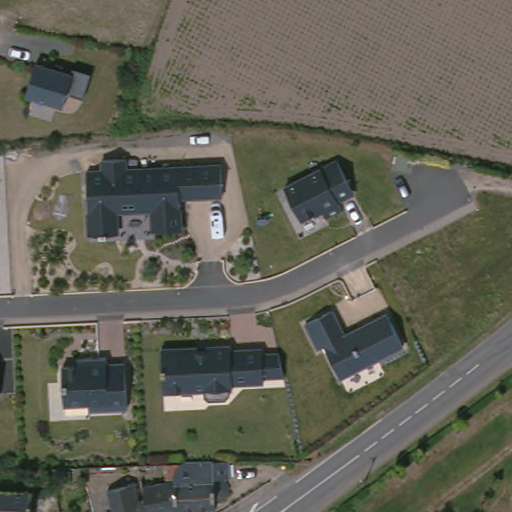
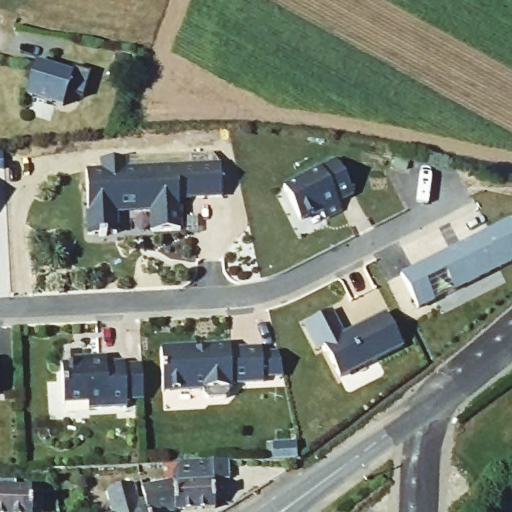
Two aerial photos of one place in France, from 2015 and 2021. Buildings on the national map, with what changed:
unchanged [(83,100),(69,95),(64,109),(25,98),(35,62),(89,78),(83,100)]
unchanged [(336,167),(351,200),(336,208),(340,216),(323,224),(319,216),(299,226),(283,193),(336,167)]
unchanged [(87,181),(103,180),(102,170),(127,168),(127,178),(133,178),(221,173),(223,205),(180,207),(182,239),(154,240),(153,220),(136,221),(118,222),(119,243),(91,244),(87,181)]
new [(512,264),(455,291),(444,269),(425,278),(435,301),(418,309),(402,276),(512,221),(512,264)]
unchanged [(336,381),(324,357),(317,357),(304,328),(328,315),(341,339),(382,317),(399,349),(336,381)]
unchanged [(77,365),(76,358),(106,356),(106,363),(125,362),(127,408),(90,410),(89,403),(64,405),(62,366),(77,365)]
unchanged [(264,388),(264,393),(233,394),(233,399),(230,399),(230,405),(227,409),(209,410),(205,406),(205,400),(165,401),(163,359),(198,358),(198,361),(207,361),(207,358),(232,357),(232,361),(263,360),(263,365),(280,364),(283,377),(285,387),(264,388)]
unchanged [(0,370),(1,405),(0,405),(0,370)]
unchanged [(220,504),(180,512),(175,488),(174,484),(175,480),(178,468),(201,465),(202,470),(207,469),(208,475),(227,471),(231,491),(217,494),(220,504)]
unchanged [(38,495),(37,510),(34,510),(34,512),(0,512),(0,486),(27,487),(27,495),(38,495)]
unchanged [(177,512),(113,512),(111,491),(138,487),(141,504),(147,503),(146,492),(175,488),(180,512),(177,512)]

